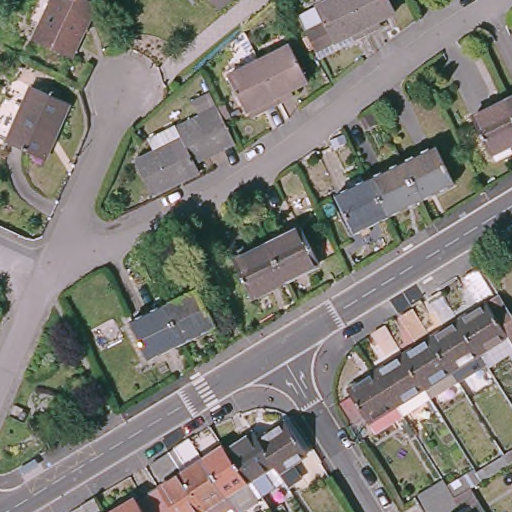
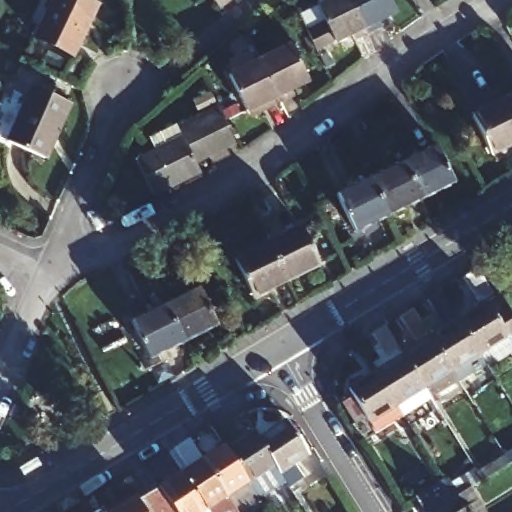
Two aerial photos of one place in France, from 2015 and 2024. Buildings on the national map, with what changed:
unchanged [(75,57),(38,40),(42,32),(32,26),(45,0),(84,0),(100,8),(75,57)]
unchanged [(214,0),(210,2),(209,0),(214,0)]
unchanged [(322,15),(315,0),(354,0),(367,27),(352,35),(318,52),(315,44),(305,24),(322,15)]
unchanged [(394,0),(395,2),(377,11),(381,20),(367,27),(354,0),(394,0)]
unchanged [(256,56),(288,40),(305,76),(287,86),(290,92),(277,99),(256,56)]
unchanged [(245,107),(227,71),(256,56),(277,99),(265,105),(265,104),(247,112),(245,107)]
unchanged [(65,97),(40,154),(7,139),(33,80),(65,97)]
unchanged [(501,100),(512,95),(512,123),(501,100)]
unchanged [(487,152),(469,115),(501,100),(512,123),(512,140),(487,152)]
unchanged [(234,143),(193,163),(195,169),(173,181),(175,184),(151,196),(134,162),(153,152),(148,141),(175,127),(177,132),(218,113),(234,143)]
unchanged [(400,155),(434,139),(453,176),(418,193),(400,155)]
unchanged [(400,155),(418,193),(383,210),(366,173),(400,155)]
unchanged [(383,210),(351,226),(333,189),(366,173),(383,210)]
unchanged [(298,224),(317,260),(282,278),(263,241),(298,224)]
unchanged [(282,278),(248,295),(230,257),(263,241),(282,278)]
unchanged [(490,287),(477,296),(462,272),(475,264),(490,287)]
unchanged [(196,281),(214,317),(180,334),(162,298),(196,281)]
unchanged [(443,318),(430,294),(441,286),(455,310),(443,318)]
unchanged [(507,329),(478,346),(458,315),(498,289),(512,310),(512,337),(507,329)]
unchanged [(180,334),(147,351),(129,314),(162,298),(180,334)]
unchanged [(415,335),(401,313),(413,305),(427,327),(415,335)]
unchanged [(457,375),(431,333),(458,315),(478,346),(485,358),(457,375)]
unchanged [(385,323),(397,342),(385,349),(374,331),(385,323)]
unchanged [(426,388),(403,351),(431,333),(457,375),(429,393),(426,388)]
unchanged [(403,351),(426,388),(429,393),(402,410),(395,397),(377,368),(403,351)]
unchanged [(395,397),(402,410),(376,427),(366,412),(355,419),(341,396),(351,390),(348,386),(377,368),(395,397)]
unchanged [(279,418),(300,450),(273,467),(270,461),(269,460),(252,435),(279,418)]
unchanged [(220,448),(218,444),(247,426),(252,435),(269,460),(241,478),(220,448)]
unchanged [(202,509),(174,468),(179,465),(166,445),(182,436),(195,454),(232,509),(234,512),(204,512),(202,509)]
unchanged [(195,454),(216,441),(218,444),(220,448),(241,478),(252,494),(232,509),(195,454)]
unchanged [(438,477),(442,483),(468,465),(471,469),(498,450),(512,442),(512,456),(505,460),(477,478),(465,485),(482,512),(423,512),(412,495),(438,477)]
unchanged [(167,506),(152,484),(157,480),(144,459),(161,449),(174,468),(202,509),(198,512),(196,509),(192,512),(170,512),(167,506)]
unchanged [(100,511),(130,492),(132,496),(152,484),(167,506),(158,512),(100,512),(100,511)]
unchanged [(100,512),(82,512),(75,501),(89,493),(100,511),(100,512)]

